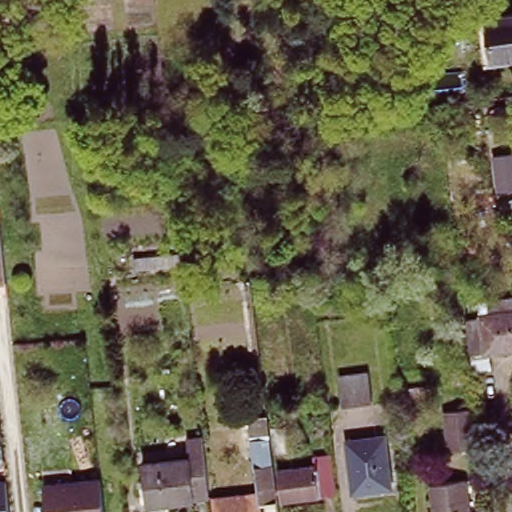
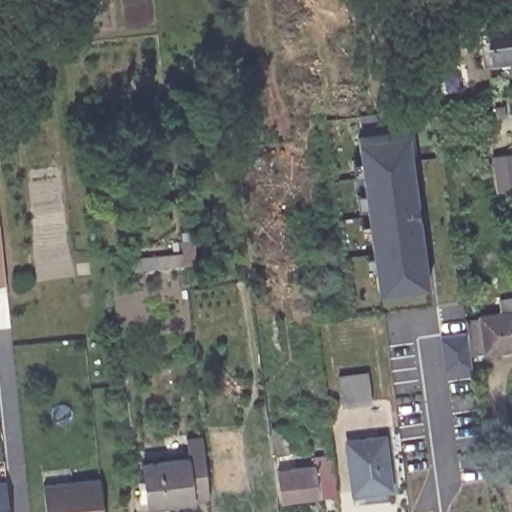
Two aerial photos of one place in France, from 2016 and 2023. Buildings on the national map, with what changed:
unchanged [(512,16),(512,58),(493,60),(487,20),(512,16)]
new [(378,290),(356,137),(408,130),(429,283),(378,290)]
unchanged [(492,160),(512,157),(512,191),(496,193),(492,160)]
unchanged [(155,271),(153,259),(182,255),(183,268),(155,271)]
unchanged [(0,278),(0,269),(1,278),(0,278)]
unchanged [(466,318),(479,316),(479,315),(485,313),(484,302),(512,298),(512,350),(471,355),(466,318)]
new [(472,368),(446,371),(441,333),(467,330),(471,355),(472,368)]
unchanged [(342,406),(338,378),(368,373),(371,401),(342,406)]
demolished [(449,451),(444,412),(472,410),(476,449),(449,451)]
unchanged [(275,456),(271,430),(286,427),(289,454),(275,456)]
unchanged [(353,494),(346,442),(383,437),(389,488),(353,494)]
unchanged [(146,505),(141,465),(188,460),(186,441),(201,439),(208,492),(208,498),(146,505)]
unchanged [(261,505),(261,512),(216,512),(214,500),(258,494),(256,485),(251,441),(268,439),(274,483),(276,502),(261,505)]
unchanged [(281,502),(276,472),(313,466),(313,458),(330,456),(335,495),(281,502)]
unchanged [(6,480),(10,512),(0,512),(0,480),(6,480)]
unchanged [(44,486),(101,480),(105,512),(47,512),(44,486)]
demolished [(426,486),(461,481),(465,512),(429,512),(426,486)]

